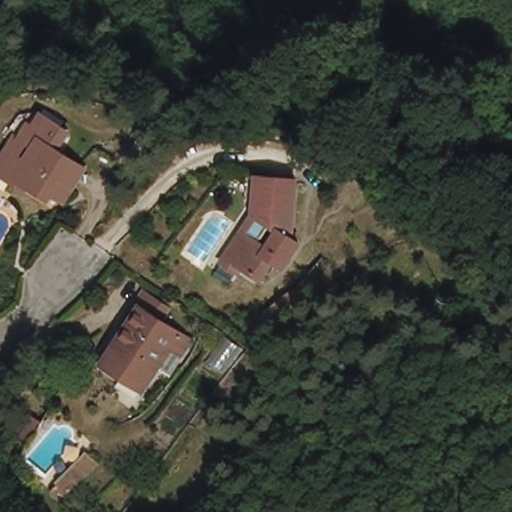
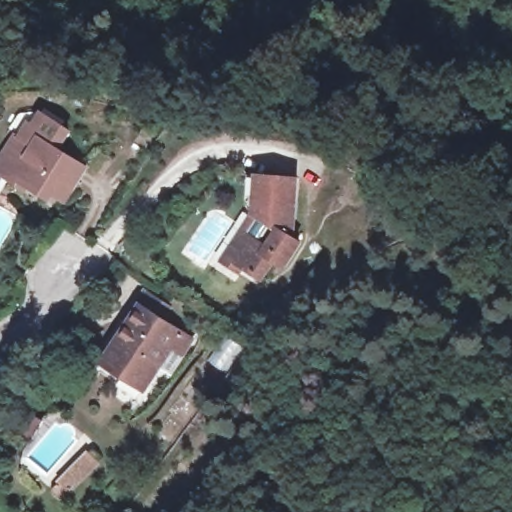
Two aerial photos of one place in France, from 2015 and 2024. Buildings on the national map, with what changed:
unchanged [(25,142),(35,126),(39,129),(47,116),(74,135),(64,152),(90,170),(69,202),(57,194),(52,200),(22,181),(19,186),(0,173),(0,168),(20,139),(25,142)]
unchanged [(224,262),(254,215),(255,202),(248,201),(250,176),(300,180),(295,240),(300,244),(285,267),(275,261),(262,280),(245,268),(241,274),(224,262)]
unchanged [(192,339),(182,353),(172,347),(147,387),(106,360),(141,305),(149,294),(169,307),(162,319),(182,332),(192,339)]
unchanged [(98,466),(63,501),(54,493),(54,489),(87,456),(98,466)]

